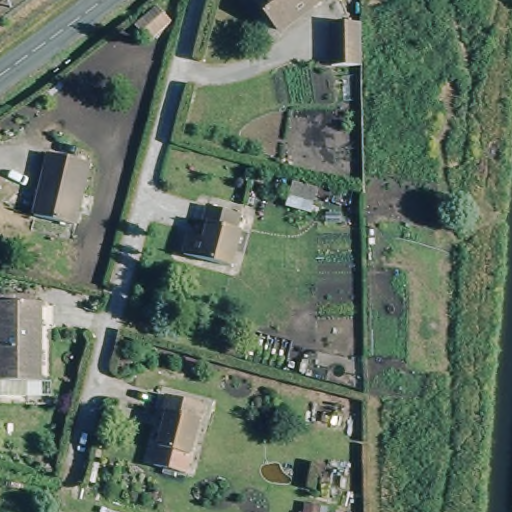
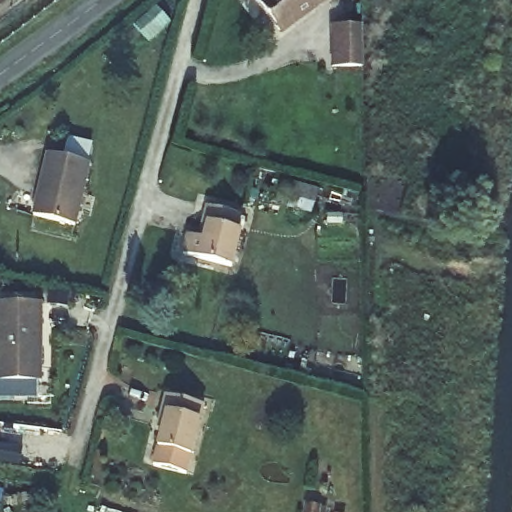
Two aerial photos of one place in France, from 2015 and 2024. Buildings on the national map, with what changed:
unchanged [(319,0),(279,30),(256,0),(319,0)]
unchanged [(360,24),(360,66),(330,66),(330,24),(360,24)]
unchanged [(49,154),(90,165),(75,226),(34,216),(49,154)]
unchanged [(183,235),(199,240),(203,224),(198,222),(202,206),(235,215),(231,230),(235,231),(226,267),(177,255),(183,235)]
unchanged [(40,303),(40,382),(25,382),(25,397),(0,397),(0,303),(40,303)]
unchanged [(167,412),(162,411),(166,396),(204,405),(186,475),(154,466),(167,412)]

